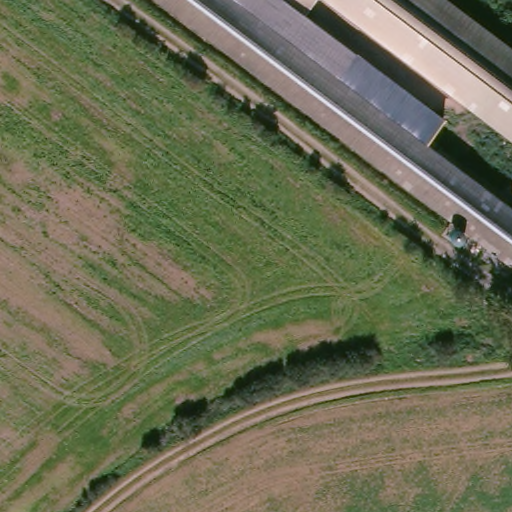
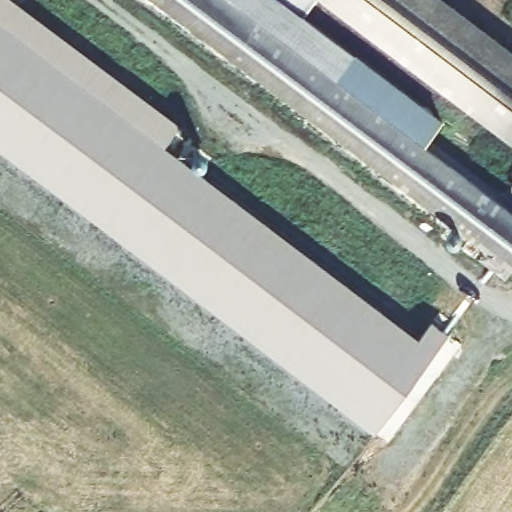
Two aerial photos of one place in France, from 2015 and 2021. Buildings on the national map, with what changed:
new [(4,0),(178,133),(162,154),(416,347),(430,328),(447,341),(376,433),(0,147),(0,0),(4,0)]
unchanged [(321,0),(307,17),(446,119),(427,143),(512,203),(512,267),(157,0),(321,0)]
unchanged [(512,139),(323,0),(456,0),(512,42),(512,139)]

